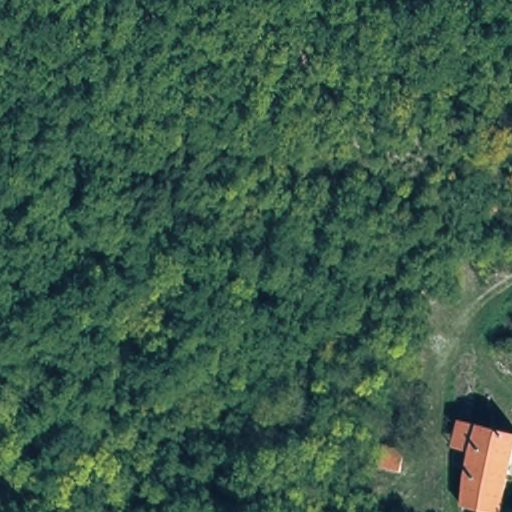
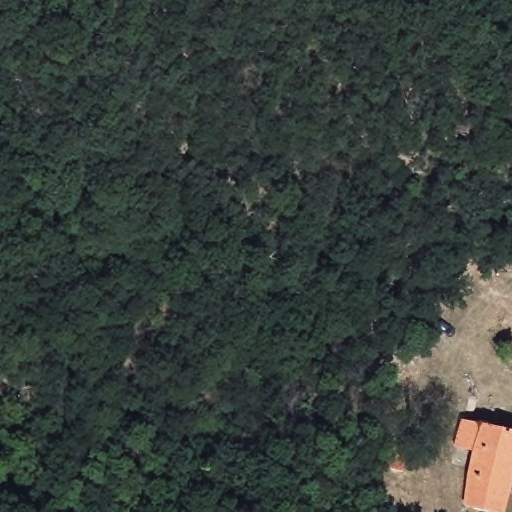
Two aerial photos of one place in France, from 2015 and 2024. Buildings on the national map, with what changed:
unchanged [(455,450),(460,421),(512,432),(512,481),(505,512),(478,512),(454,506),(467,451),(455,450)]

